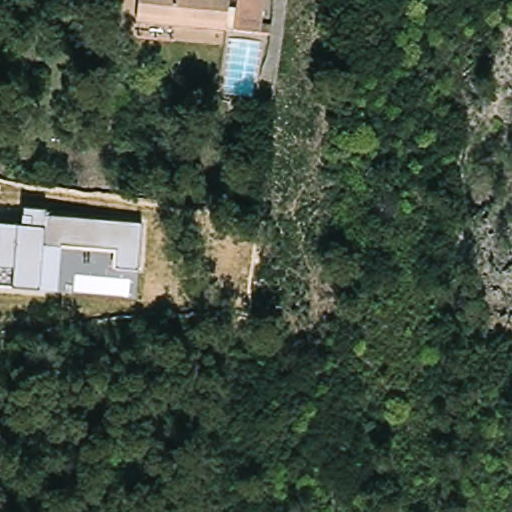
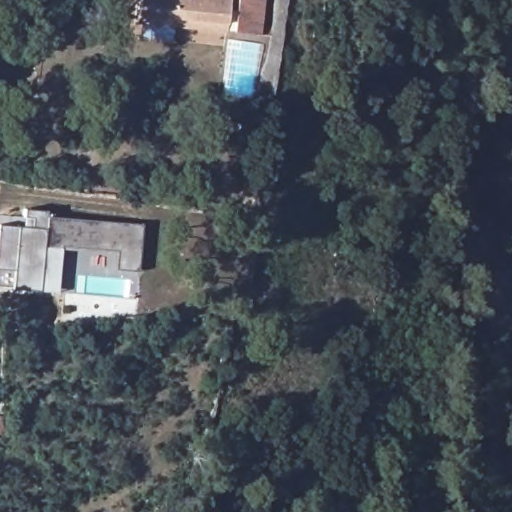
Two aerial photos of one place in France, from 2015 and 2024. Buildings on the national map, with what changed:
unchanged [(228,33),(140,24),(143,0),(231,0),(228,33)]
unchanged [(261,36),(236,34),(240,0),(265,0),(261,36)]
unchanged [(13,288),(0,286),(0,225),(22,228),(24,208),(47,211),(45,219),(142,226),(138,271),(112,269),(113,252),(62,248),(57,295),(13,288)]

